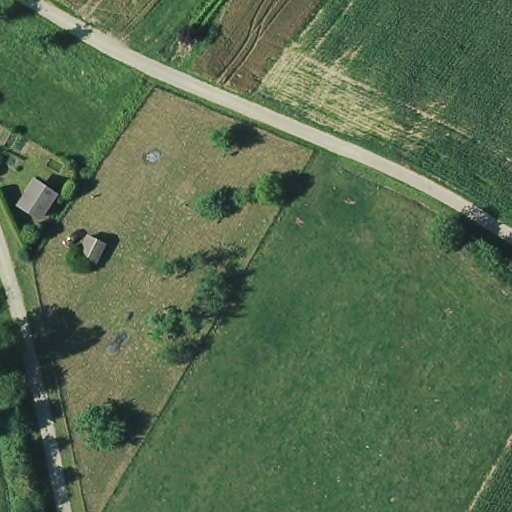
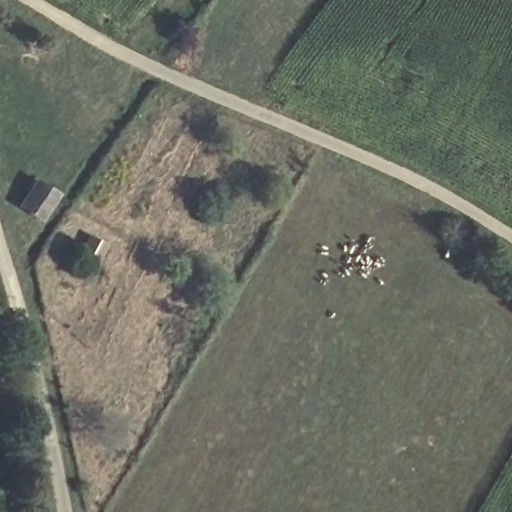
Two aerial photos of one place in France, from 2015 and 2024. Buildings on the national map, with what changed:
unchanged [(44,213),(27,201),(38,183),(57,195),(44,213)]
unchanged [(108,249),(100,265),(84,255),(92,239),(108,249)]

